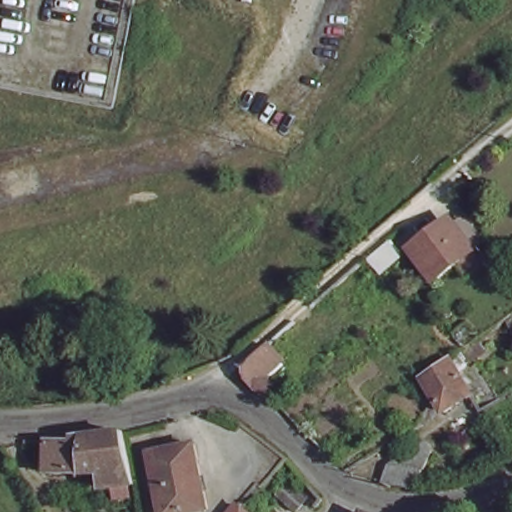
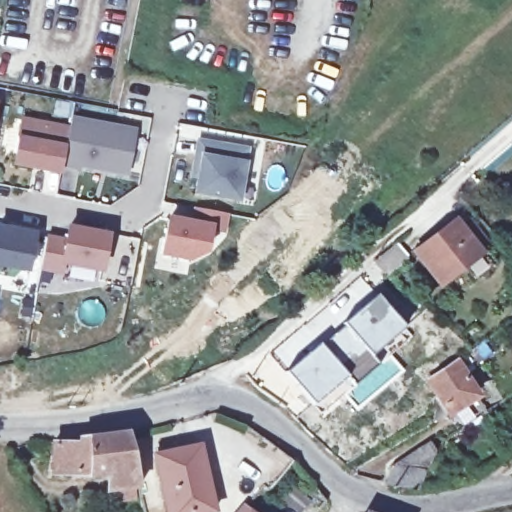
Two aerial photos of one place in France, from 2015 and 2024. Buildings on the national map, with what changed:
new [(73,129),(75,119),(138,131),(130,173),(83,165),(83,167),(66,164),(73,129)]
new [(26,120),(73,129),(66,164),(64,172),(18,163),(26,120)]
new [(203,141),(249,150),(241,199),(200,192),(203,176),(196,175),(203,141)]
new [(171,219),(196,224),(199,208),(228,214),(225,230),(213,228),(208,251),(193,259),(165,254),(171,219)]
new [(46,234),(64,236),(66,223),(110,231),(101,273),(67,268),(66,276),(39,270),(46,234)]
unchanged [(440,291),(414,256),(455,225),(462,235),(471,229),(488,250),(479,257),(481,260),(440,291)]
unchanged [(407,264),(388,277),(376,267),(396,251),(407,264)]
new [(315,406),(286,374),(299,370),(312,351),(348,325),(351,317),(376,299),(389,317),(393,314),(403,328),(399,331),(408,343),(351,385),(329,396),(315,406)]
unchanged [(295,362),(276,379),(284,390),(275,399),(259,387),(253,371),(281,347),(295,362)]
unchanged [(195,378),(183,383),(175,367),(186,362),(195,378)]
unchanged [(475,397),(448,413),(441,398),(433,381),(459,362),(475,397)]
unchanged [(106,487),(105,473),(55,471),(53,440),(78,440),(81,436),(128,430),(129,439),(130,445),(138,486),(106,487)]
unchanged [(437,453),(416,489),(406,491),(381,485),(386,468),(429,445),(437,453)]
unchanged [(198,447),(213,512),(165,512),(153,457),(198,447)]
unchanged [(304,512),(293,512),(278,500),(290,487),(311,505),(304,512)]
unchanged [(374,512),(359,512),(362,507),(374,512)]

